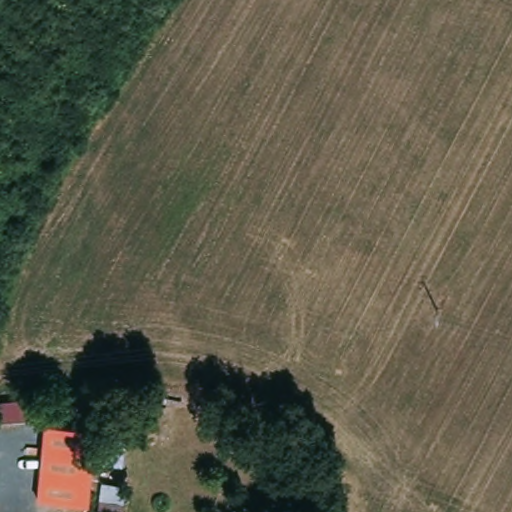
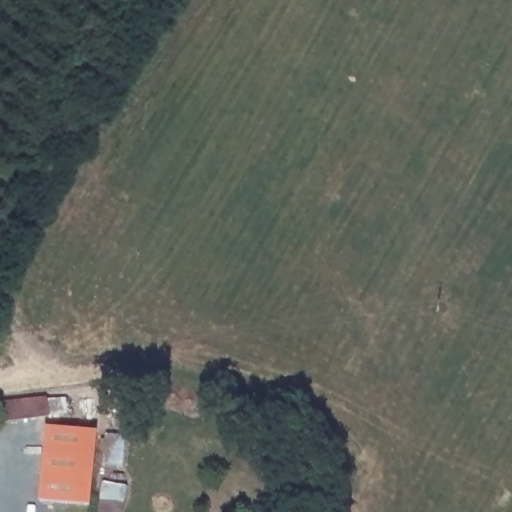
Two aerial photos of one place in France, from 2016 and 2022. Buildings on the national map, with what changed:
unchanged [(44,403),(47,426),(0,428),(0,403),(44,403)]
unchanged [(92,430),(92,505),(38,500),(49,426),(92,430)]

